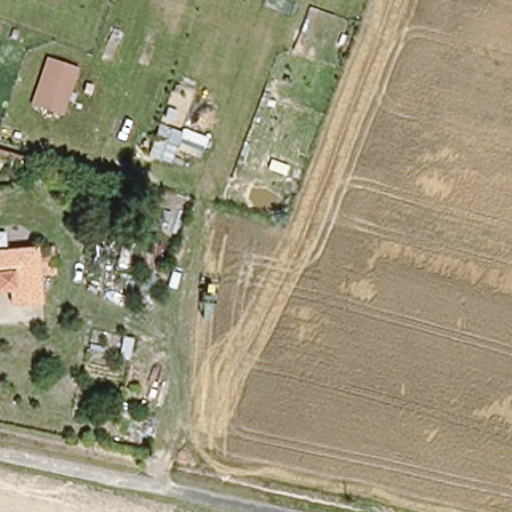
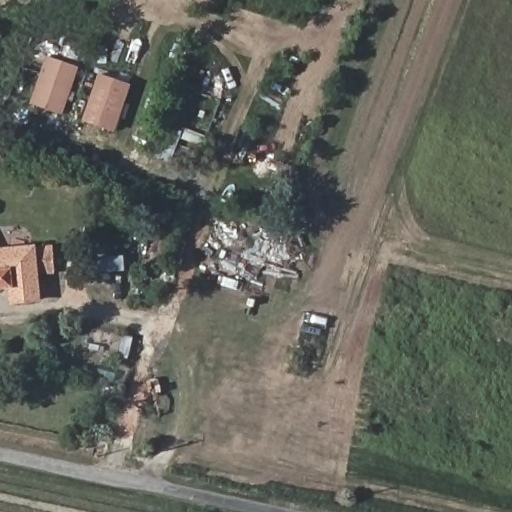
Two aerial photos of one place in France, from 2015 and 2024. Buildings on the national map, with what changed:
unchanged [(63,114),(31,103),(47,57),(78,68),(63,114)]
new [(115,132),(83,120),(99,74),(131,85),(115,132)]
unchanged [(35,295),(14,297),(13,285),(0,286),(0,247),(30,244),(35,295)]

